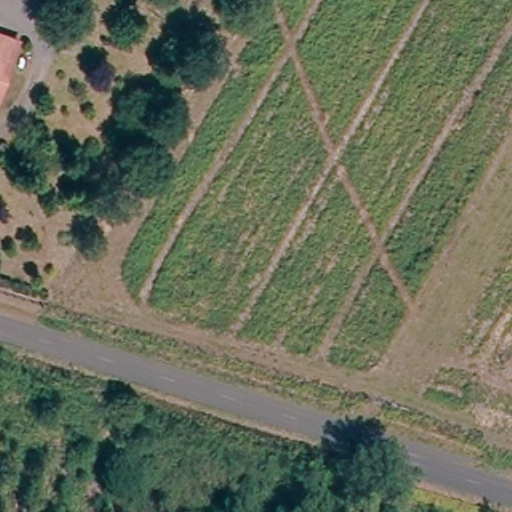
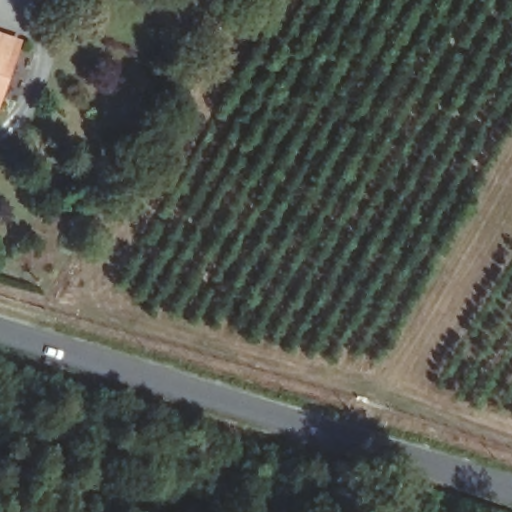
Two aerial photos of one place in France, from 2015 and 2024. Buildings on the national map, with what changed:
unchanged [(0,39),(18,45),(8,71),(0,68),(0,39)]
unchanged [(0,68),(8,71),(0,94),(0,68)]

